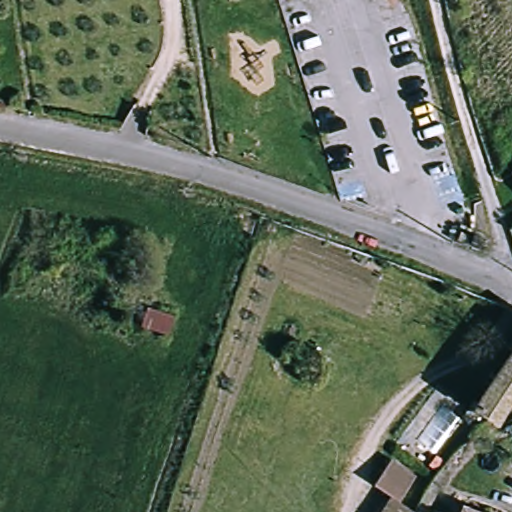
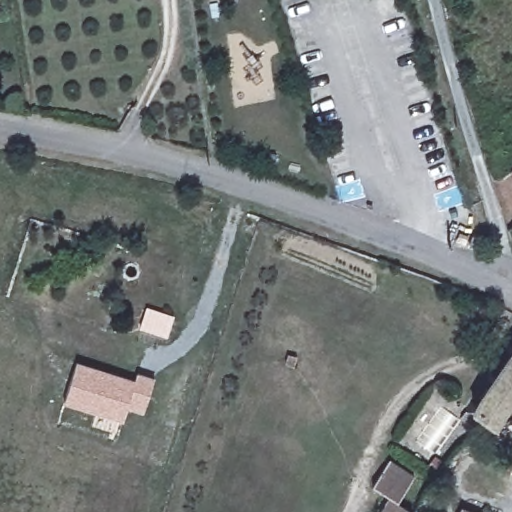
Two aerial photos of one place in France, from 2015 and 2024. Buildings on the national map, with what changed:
unchanged [(145,309),(169,317),(162,336),(139,328),(145,309)]
unchanged [(510,340),(512,342),(512,349),(506,345),(510,340)]
unchanged [(495,421),(479,410),(475,415),(465,408),(474,396),(479,399),(493,379),(487,375),(491,369),(496,373),(512,349),(512,405),(509,402),(495,421)]
new [(135,380),(137,372),(154,378),(143,413),(127,408),(123,421),(63,402),(77,361),(135,380)]
unchanged [(414,474),(399,499),(413,507),(410,512),(378,512),(389,493),(373,482),(389,458),(414,474)]
unchanged [(495,512),(459,512),(464,499),(495,512)]

